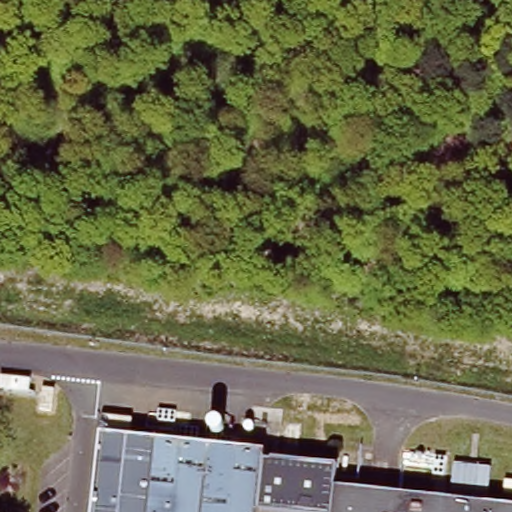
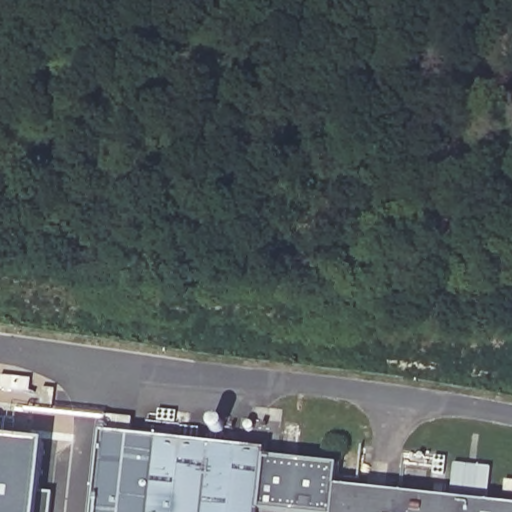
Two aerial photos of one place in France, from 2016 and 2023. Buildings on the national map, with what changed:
unchanged [(102,428),(115,430),(116,416),(130,418),(129,432),(264,446),(257,507),(303,512),(93,512),(102,428)]
new [(38,512),(0,512),(0,443),(45,449),(38,512)]
unchanged [(335,481),(512,502),(512,512),(331,512),(335,481)]

